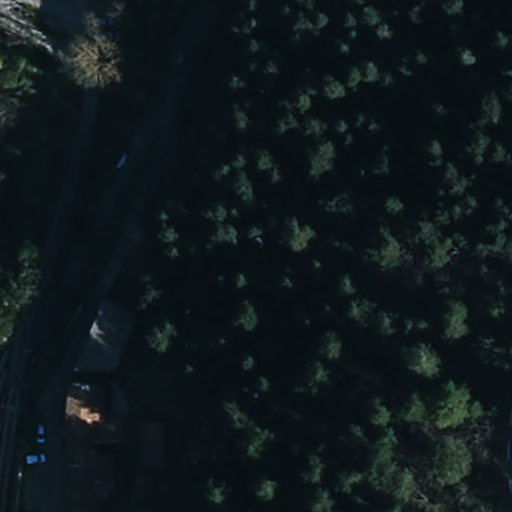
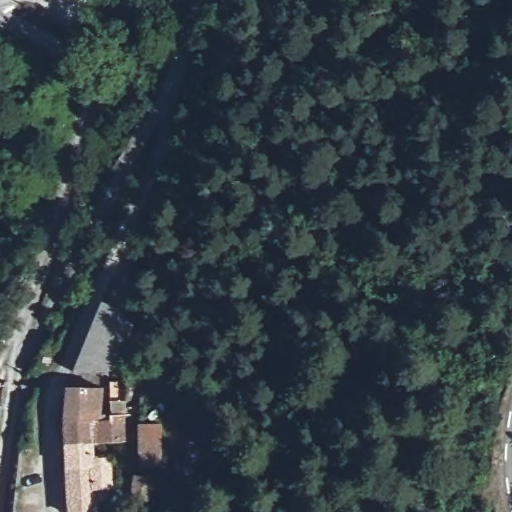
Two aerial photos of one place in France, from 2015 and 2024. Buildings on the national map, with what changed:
unchanged [(117,372),(73,372),(102,305),(139,313),(117,372)]
unchanged [(66,399),(68,387),(106,388),(107,417),(65,417),(66,399)]
unchanged [(65,444),(65,417),(107,417),(117,417),(116,397),(134,397),(132,417),(133,439),(127,439),(105,441),(104,453),(124,455),(124,475),(124,498),(99,498),(100,512),(68,512),(65,466),(65,444)]
unchanged [(162,463),(143,463),(144,427),(162,426),(162,463)]
unchanged [(153,499),(140,498),(142,481),(154,482),(153,499)]

